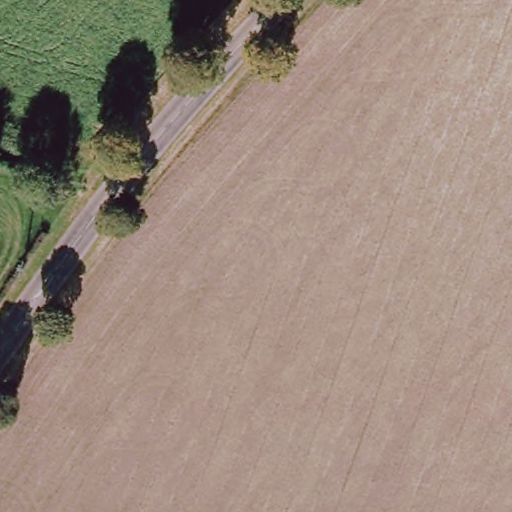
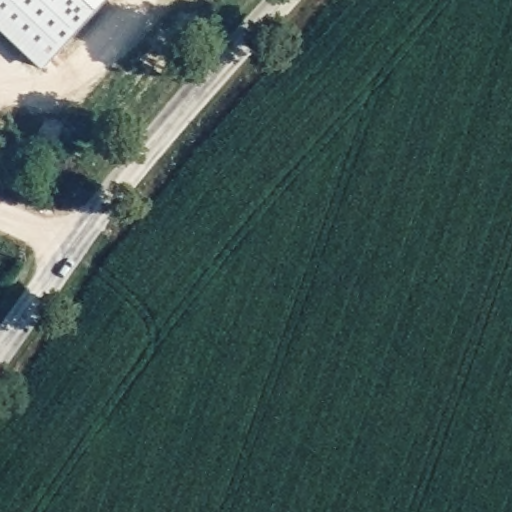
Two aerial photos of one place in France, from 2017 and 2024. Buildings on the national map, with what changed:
new [(0,36),(0,0),(111,0),(40,74),(0,36)]

